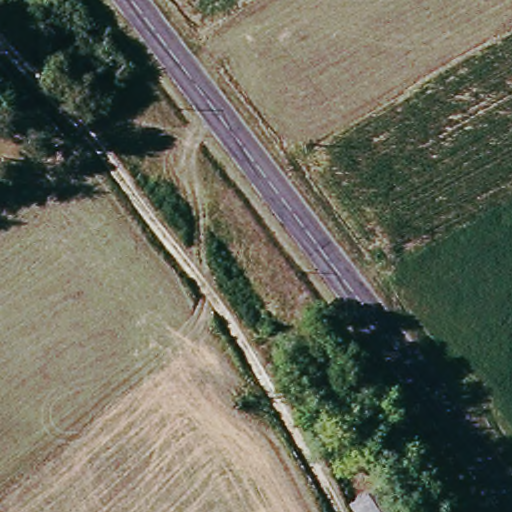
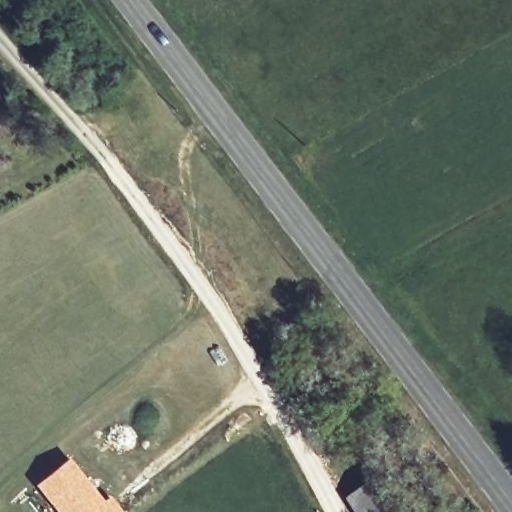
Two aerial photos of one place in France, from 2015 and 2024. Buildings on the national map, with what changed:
new [(105,499),(110,495),(124,511),(122,512),(57,512),(35,485),(70,457),(105,499)]
unchanged [(371,480),(394,512),(348,512),(340,501),(371,480)]

